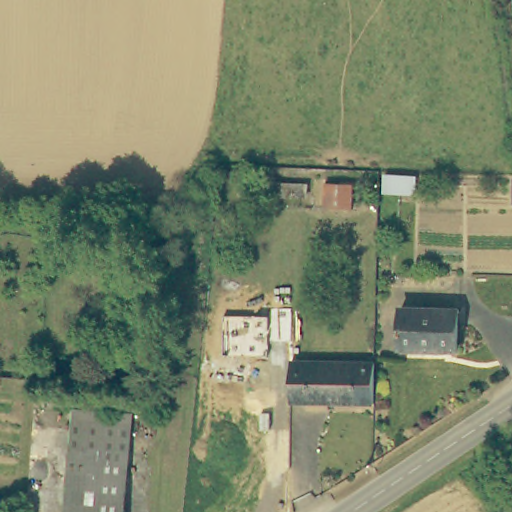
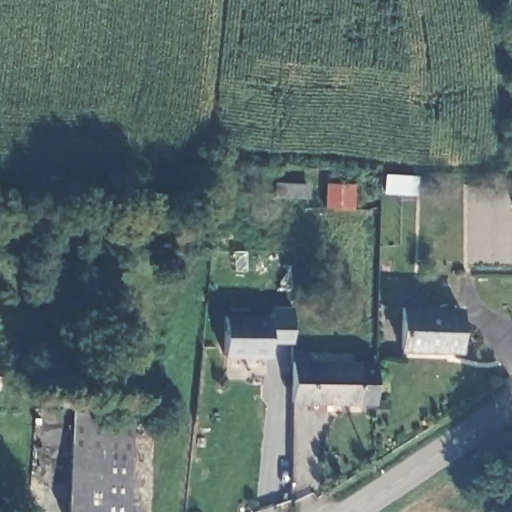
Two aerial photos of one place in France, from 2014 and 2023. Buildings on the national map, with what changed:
unchanged [(416,177),(415,194),(385,193),(385,177),(416,177)]
unchanged [(512,178),(512,204),(511,178),(512,178)]
unchanged [(265,182),(264,195),(243,195),(244,181),(265,182)]
unchanged [(305,184),(304,198),(277,197),(278,184),(305,184)]
unchanged [(355,185),(354,210),(326,210),(327,185),(355,185)]
unchanged [(400,306),(457,307),(456,348),(400,347),(400,306)]
unchanged [(270,355),(226,355),(226,316),(270,316),(270,355)]
unchanged [(374,402),(290,401),(291,360),(375,361),(374,402)]
unchanged [(126,512),(65,512),(72,410),(132,415),(126,512)]

